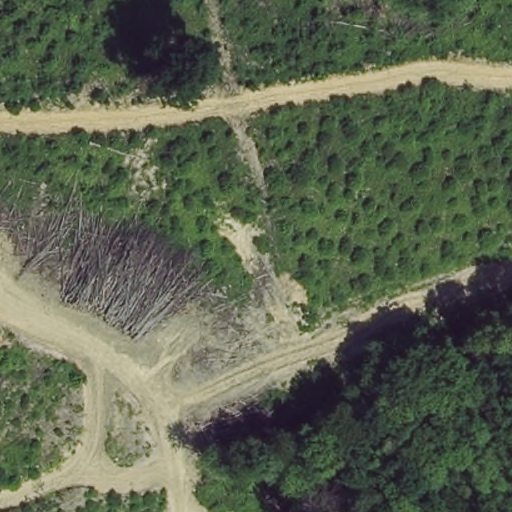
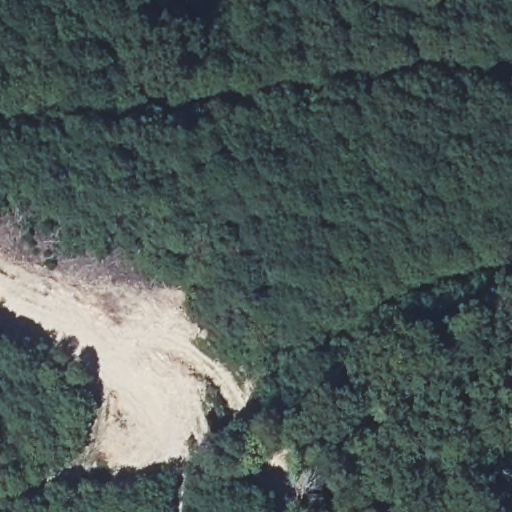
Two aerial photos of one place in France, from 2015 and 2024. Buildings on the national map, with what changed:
[]

